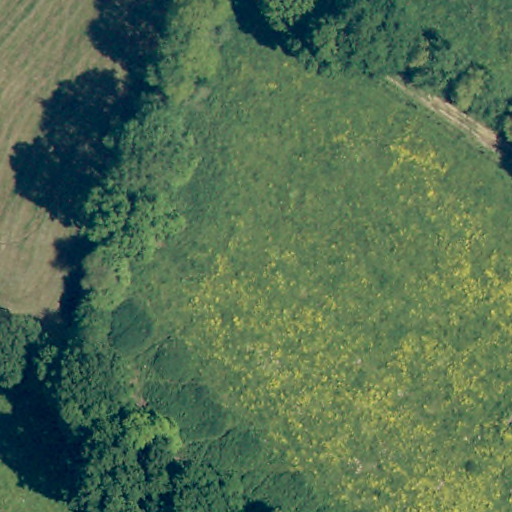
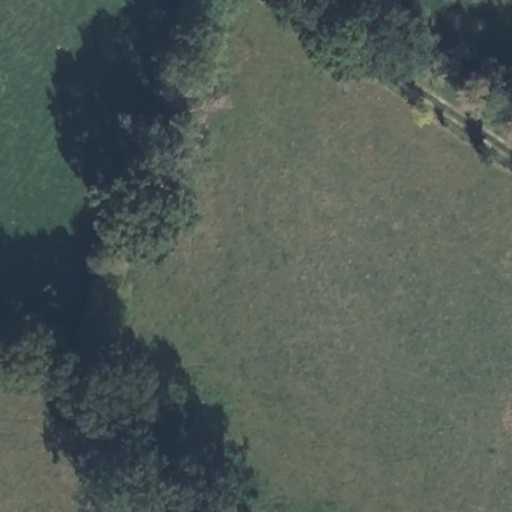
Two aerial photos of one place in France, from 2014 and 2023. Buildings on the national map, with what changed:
[]

